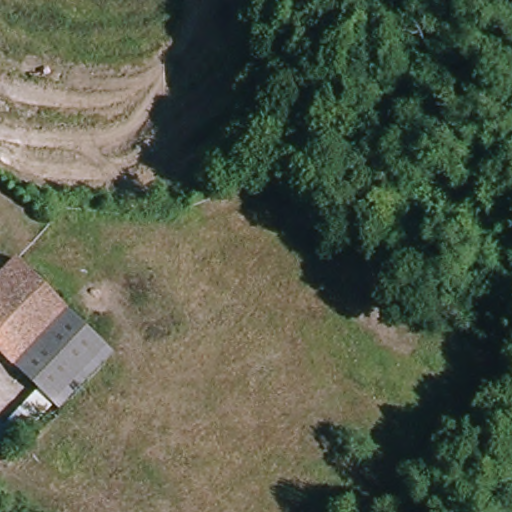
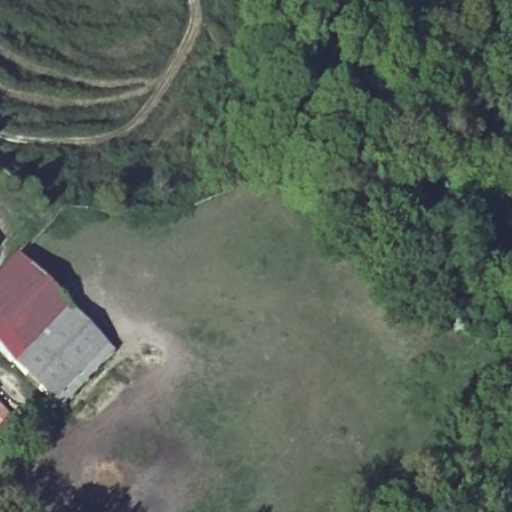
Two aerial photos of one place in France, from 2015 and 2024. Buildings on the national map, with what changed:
unchanged [(0,347),(0,281),(21,260),(107,348),(53,402),(0,347)]

